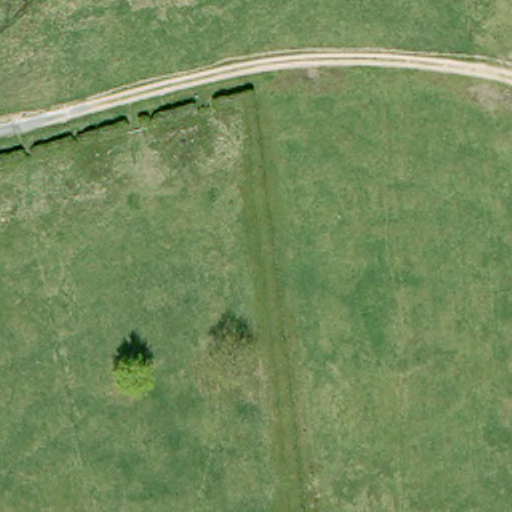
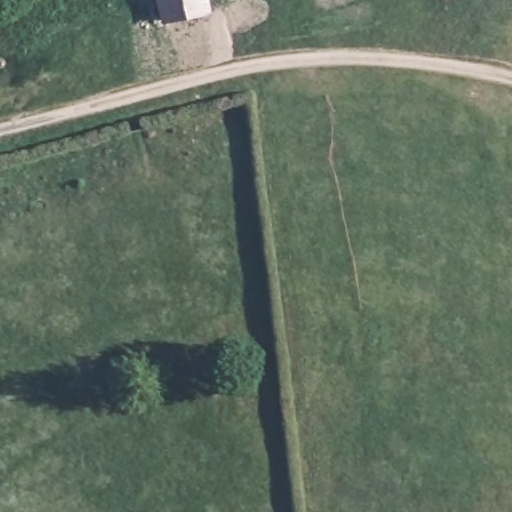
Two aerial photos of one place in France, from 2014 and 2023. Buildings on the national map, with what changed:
new [(206,14),(165,21),(161,0),(204,0),(206,14)]

